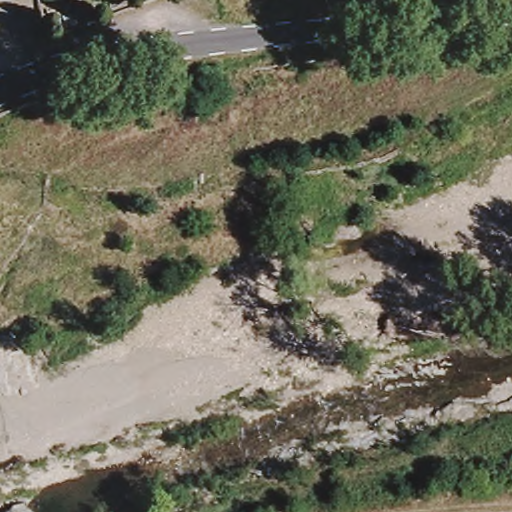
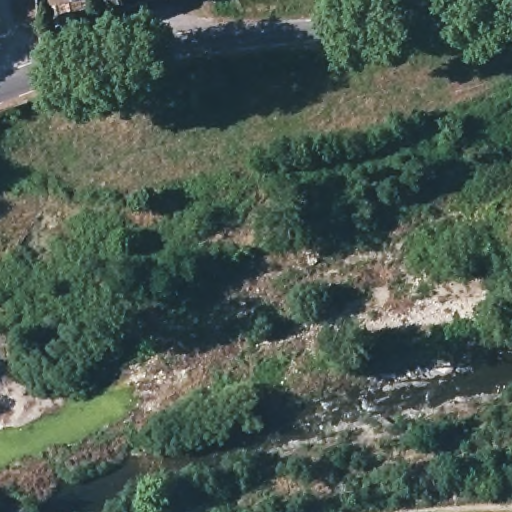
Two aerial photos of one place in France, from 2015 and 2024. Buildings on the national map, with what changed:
unchanged [(223,82),(204,83),(205,69),(222,68),(223,82)]

